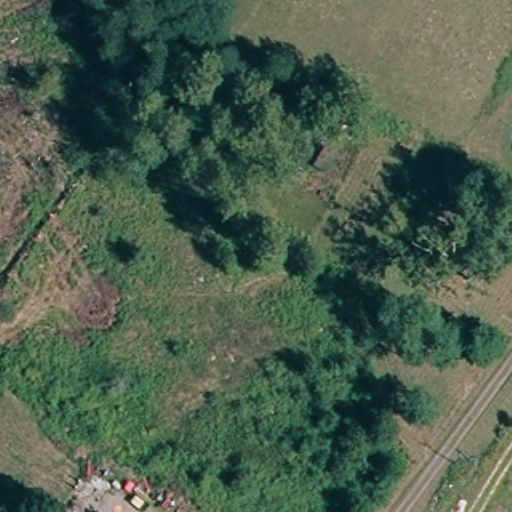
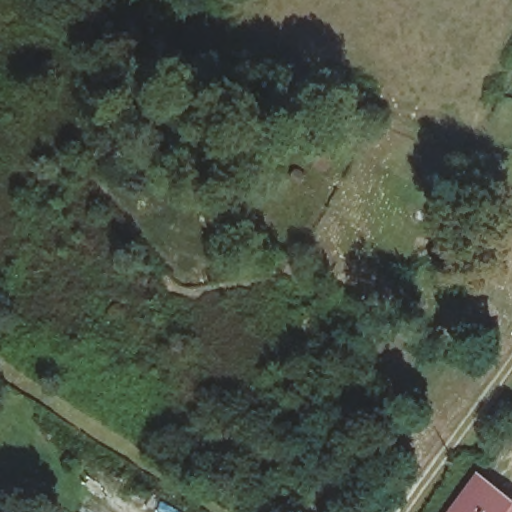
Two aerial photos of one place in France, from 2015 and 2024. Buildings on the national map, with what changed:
new [(484,474),(512,496),(512,512),(454,512),(484,474)]

